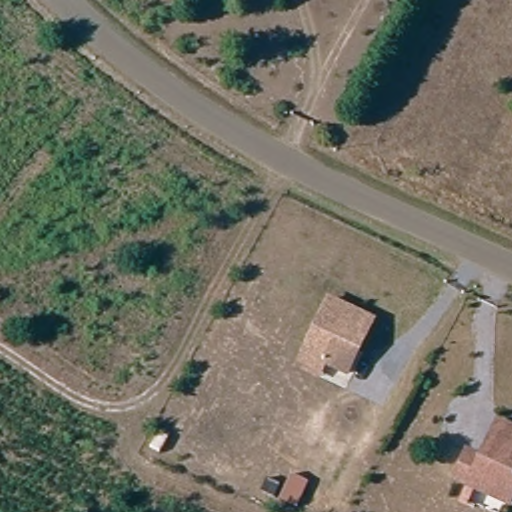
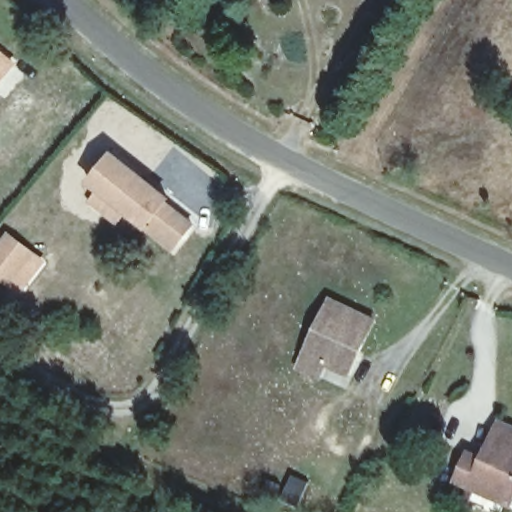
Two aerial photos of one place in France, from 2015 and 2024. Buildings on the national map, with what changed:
new [(0,84),(0,48),(18,63),(0,84)]
new [(112,150),(173,197),(170,200),(195,221),(173,250),(147,230),(125,214),(118,224),(89,201),(97,190),(88,182),(112,150)]
new [(0,241),(8,231),(35,252),(9,285),(0,279),(0,241)]
unchanged [(300,365),(307,351),(335,298),(377,321),(362,350),(358,348),(346,372),(329,363),(322,376),(300,365)]
unchanged [(503,505),(454,482),(470,450),(484,456),(501,420),(512,425),(512,498),(508,507),(503,505)]
new [(294,477),(311,485),(299,510),(283,503),(294,477)]

